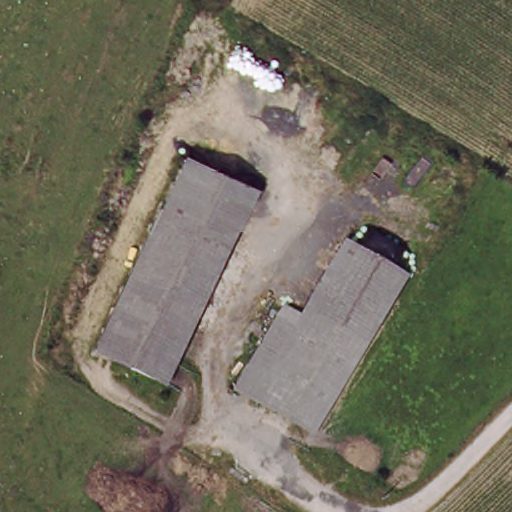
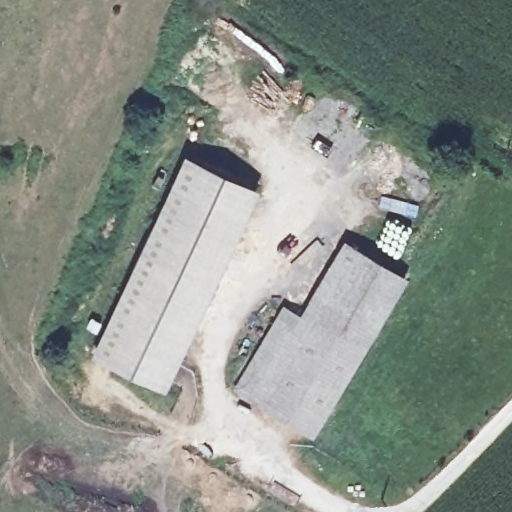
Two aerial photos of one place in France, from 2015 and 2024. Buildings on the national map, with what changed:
unchanged [(165,205),(187,156),(252,187),(229,235),(165,205)]
unchanged [(162,380),(98,348),(165,205),(229,235),(162,380)]
unchanged [(400,284),(312,434),(257,400),(297,336),(349,252),(400,284)]
unchanged [(233,386),(274,322),(297,336),(257,400),(233,386)]

